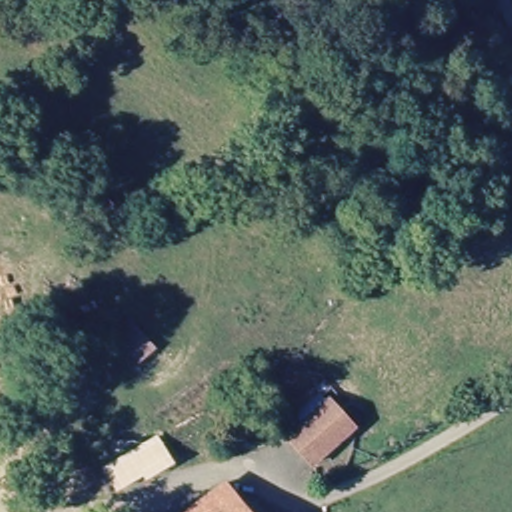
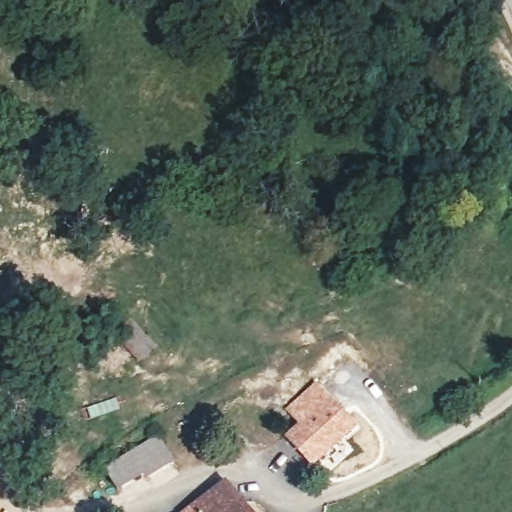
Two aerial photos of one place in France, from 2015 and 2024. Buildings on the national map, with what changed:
unchanged [(349,436),(352,440),(317,469),(293,438),(308,426),(298,414),(312,402),(322,415),(328,410),(349,436)]
unchanged [(103,465),(158,434),(176,462),(144,482),(142,478),(118,489),(103,465)]
unchanged [(226,482),(251,512),(193,512),(191,511),(226,482)]

